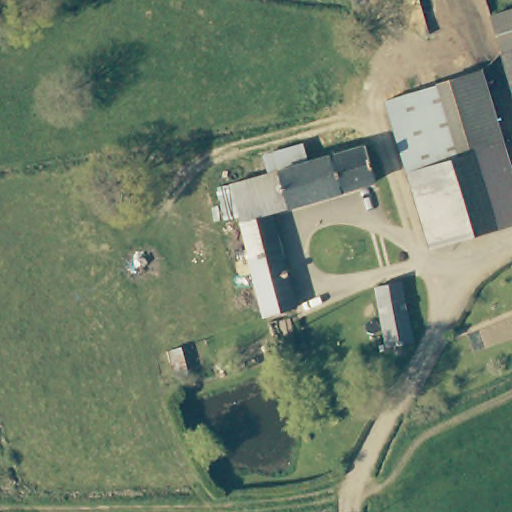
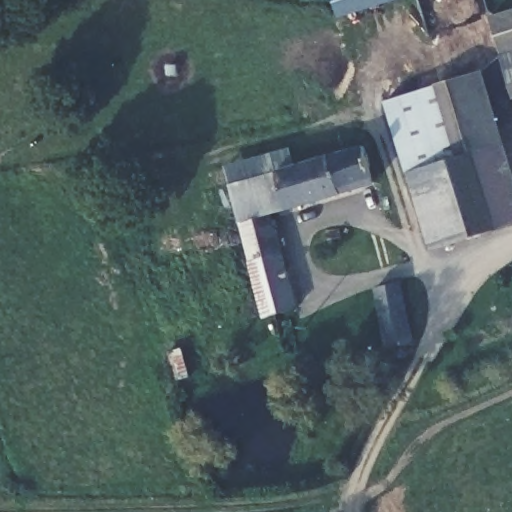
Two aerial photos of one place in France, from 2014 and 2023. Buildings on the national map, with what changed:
new [(334,0),(393,0),(339,17),(334,0)]
unchanged [(500,9),(512,5),(512,63),(500,9)]
unchanged [(512,179),(512,232),(428,252),(392,97),(487,77),(491,92),(512,179)]
unchanged [(263,154),(305,142),(311,162),(372,145),(383,182),(275,212),(301,310),(266,319),(233,185),(269,174),(263,154)]
unchanged [(375,293),(401,286),(411,341),(382,340),(375,293)]

